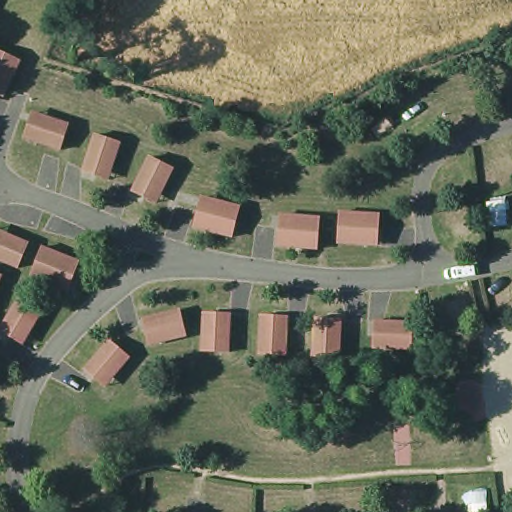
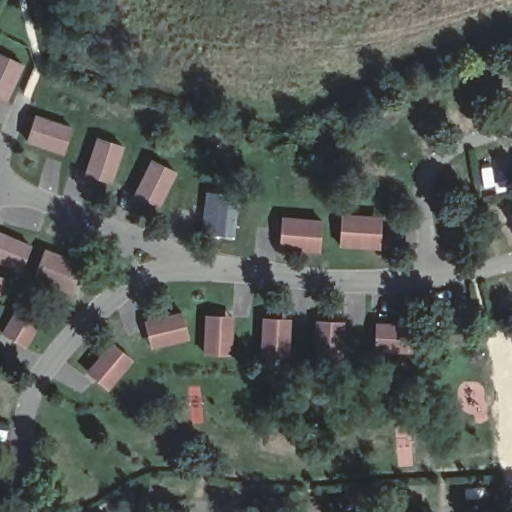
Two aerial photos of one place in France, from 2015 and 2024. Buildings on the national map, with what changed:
unchanged [(7,99),(0,96),(0,55),(23,64),(7,99)]
unchanged [(68,125),(61,151),(26,139),(35,114),(68,125)]
unchanged [(123,145),(110,182),(84,170),(95,135),(123,145)]
unchanged [(176,170),(160,204),(133,193),(151,159),(176,170)]
unchanged [(241,209),(234,237),(196,228),(203,199),(241,209)]
unchanged [(381,216),(378,248),(339,245),(341,214),(381,216)]
unchanged [(319,220),(316,249),(277,247),(281,218),(319,220)]
unchanged [(18,269),(0,261),(0,231),(28,243),(18,269)]
unchanged [(82,260),(70,293),(31,277),(42,247),(82,260)]
unchanged [(0,286),(0,274),(3,275),(0,286)]
unchanged [(46,314),(24,347),(0,329),(21,298),(46,314)]
unchanged [(182,311),(188,337),(148,346),(143,319),(182,311)]
unchanged [(233,314),(231,353),(203,352),(204,313),(233,314)]
unchanged [(291,318),(289,359),(261,359),(264,317),(291,318)]
unchanged [(344,320),(341,360),(315,359),(316,319),(344,320)]
unchanged [(414,323),(414,354),(371,352),(374,322),(414,323)]
unchanged [(133,359),(110,389),(86,371),(109,339),(133,359)]

